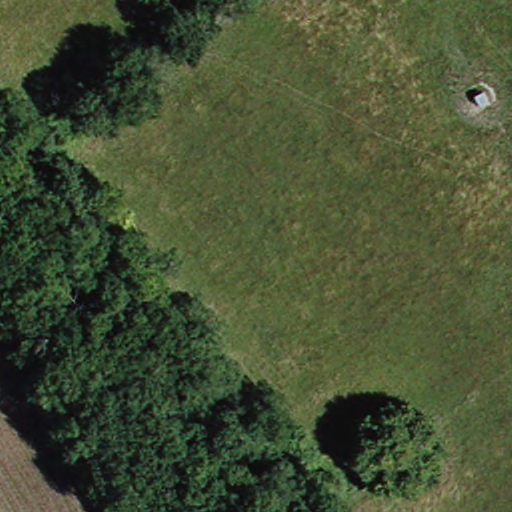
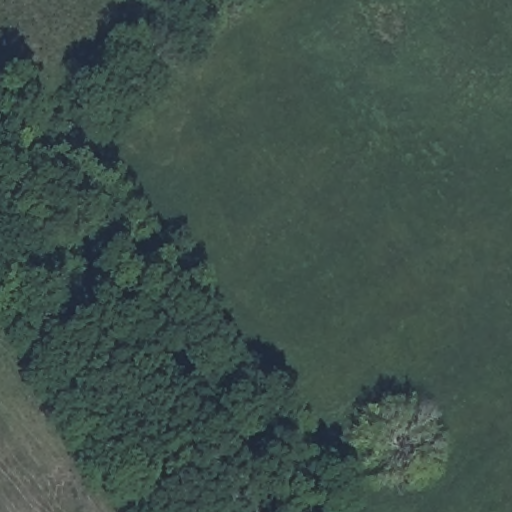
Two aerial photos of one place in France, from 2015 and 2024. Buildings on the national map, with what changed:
[]

